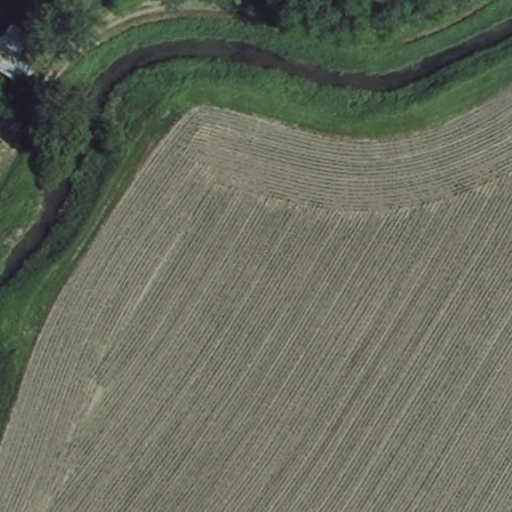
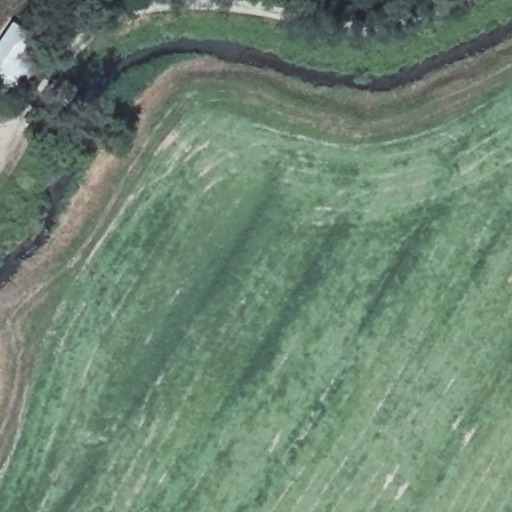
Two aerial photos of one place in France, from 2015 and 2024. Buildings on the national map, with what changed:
unchanged [(30,49),(38,38),(54,49),(26,89),(0,72),(0,62),(15,43),(30,49)]

